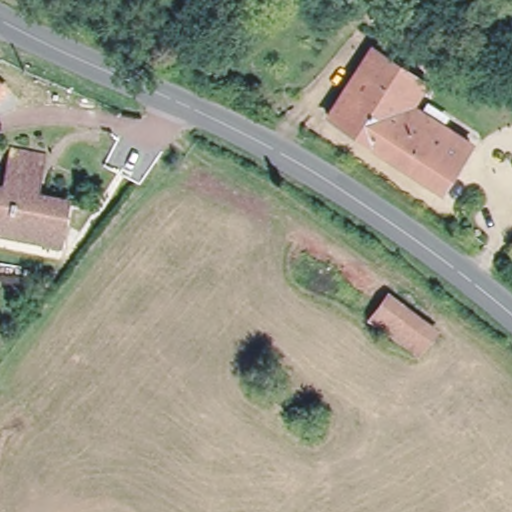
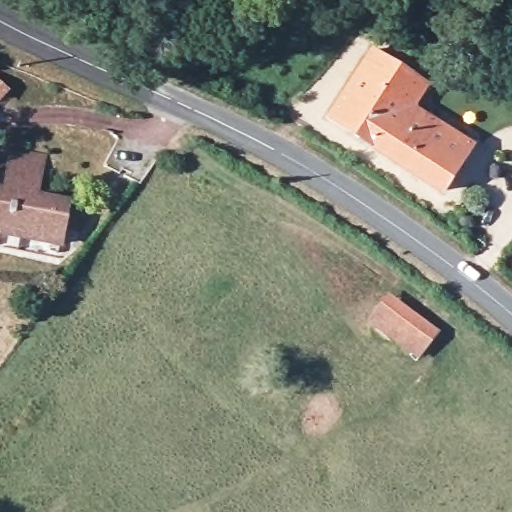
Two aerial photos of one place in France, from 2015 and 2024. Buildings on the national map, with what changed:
unchanged [(361,142),(320,114),(363,48),(384,62),(369,85),(389,99),(361,142)]
unchanged [(389,99),(369,85),(384,62),(415,83),(403,103),(461,142),(430,188),(361,142),(389,99)]
unchanged [(60,200),(53,241),(0,232),(0,171),(2,159),(4,148),(35,154),(28,194),(60,200)]
unchanged [(389,297),(436,332),(417,358),(370,323),(389,297)]

